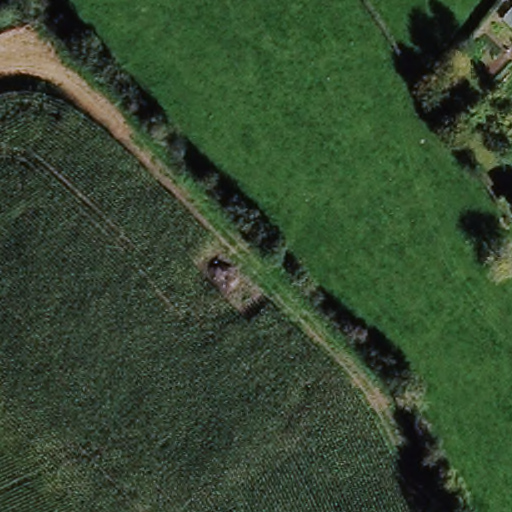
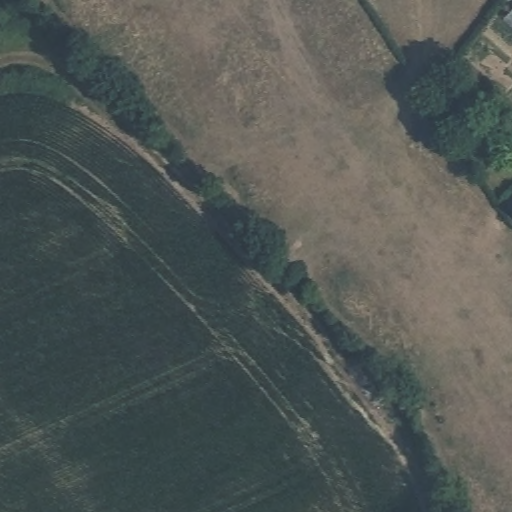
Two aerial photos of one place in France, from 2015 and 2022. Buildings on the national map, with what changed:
unchanged [(499,204),(512,196),(512,225),(512,226),(499,204)]

